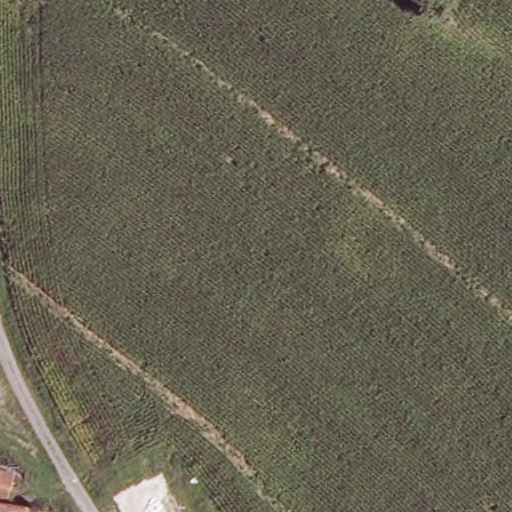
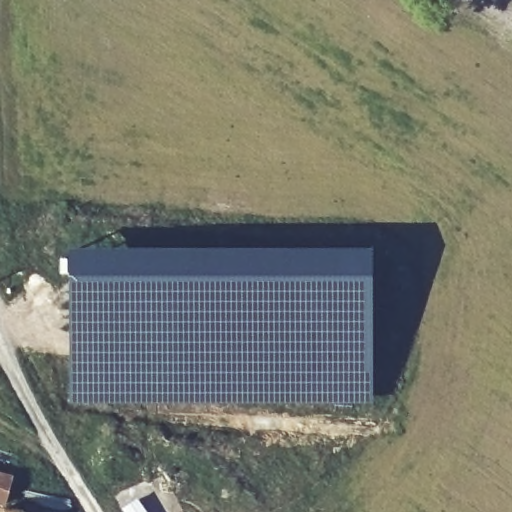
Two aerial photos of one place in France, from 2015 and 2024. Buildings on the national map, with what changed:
new [(70,251),(372,251),(373,404),(72,404),(70,251)]
unchanged [(0,500),(0,481),(5,483),(0,500)]

